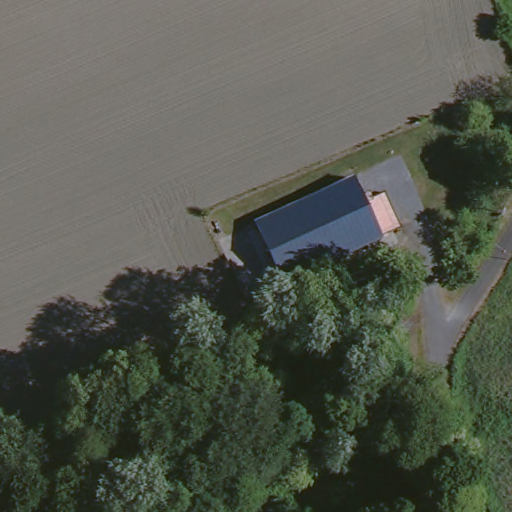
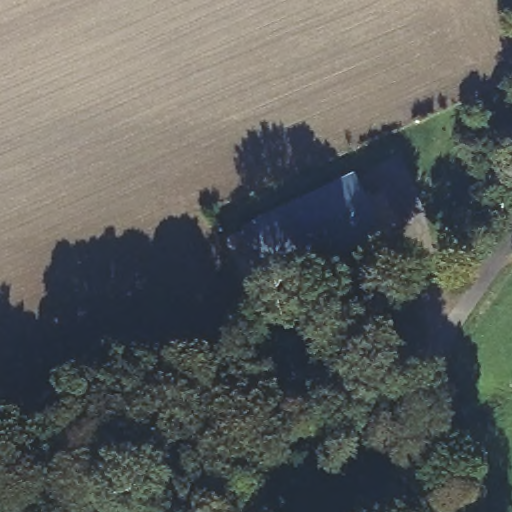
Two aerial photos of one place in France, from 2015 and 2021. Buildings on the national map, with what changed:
unchanged [(254,223),(355,177),(383,238),(282,285),(254,223)]

